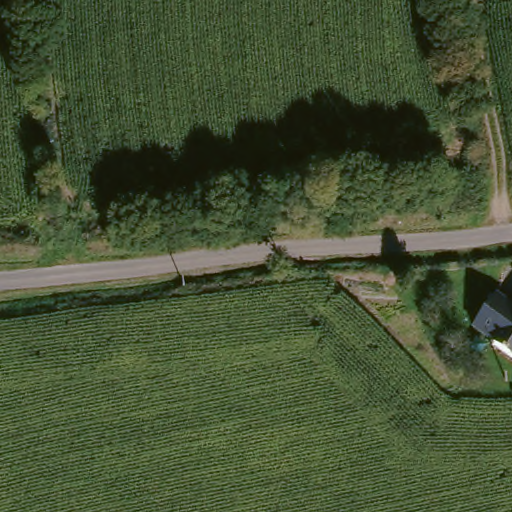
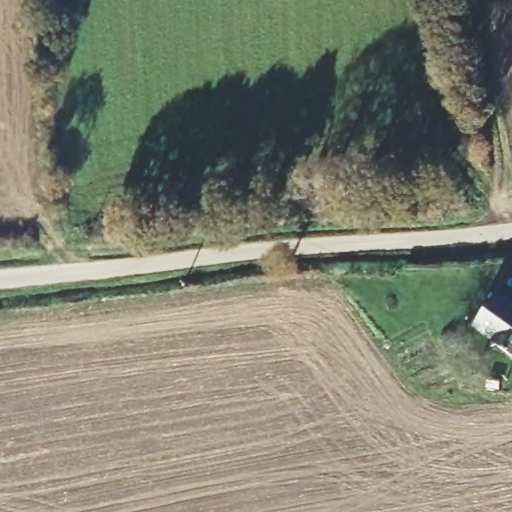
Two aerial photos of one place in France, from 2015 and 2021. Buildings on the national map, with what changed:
unchanged [(512,310),(512,363),(474,337),(494,301),(512,310)]

